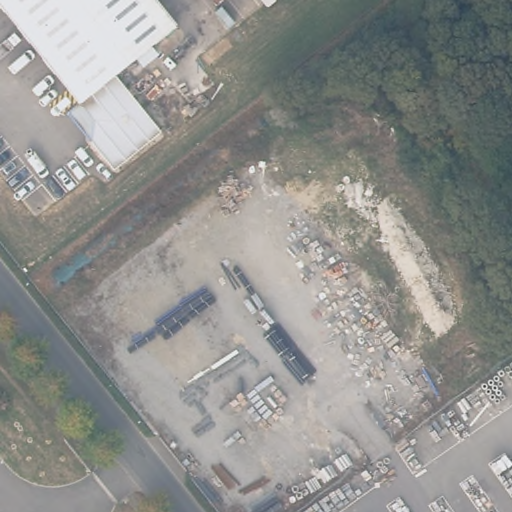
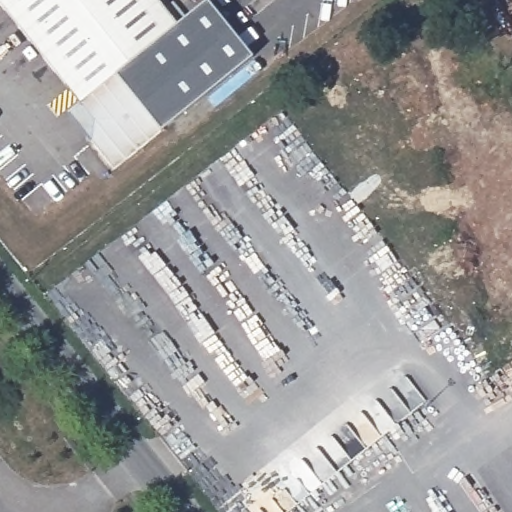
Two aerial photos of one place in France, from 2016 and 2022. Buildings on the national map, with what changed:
unchanged [(91,101),(11,0),(171,0),(190,23),(127,73),(173,130),(125,167),(103,139),(80,110),(91,101)]
new [(169,124),(127,73),(190,23),(185,17),(206,0),(208,0),(254,56),(169,124)]

